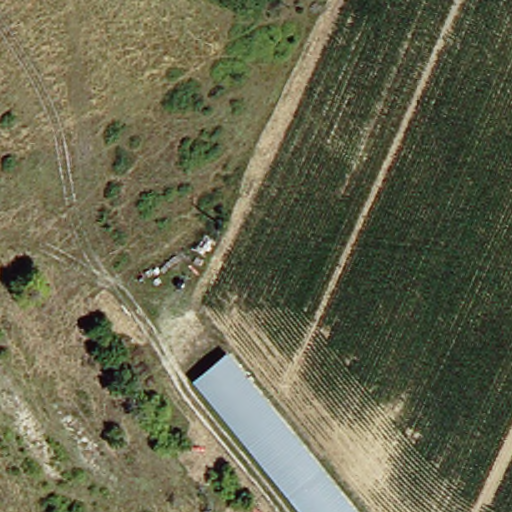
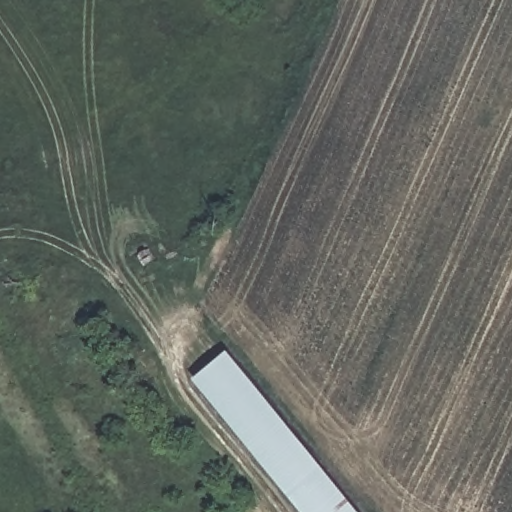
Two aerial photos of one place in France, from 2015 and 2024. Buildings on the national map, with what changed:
unchanged [(226,351),(356,512),(301,512),(188,377),(226,351)]

